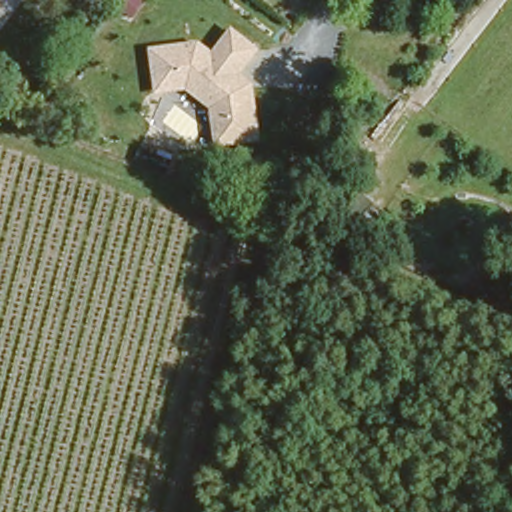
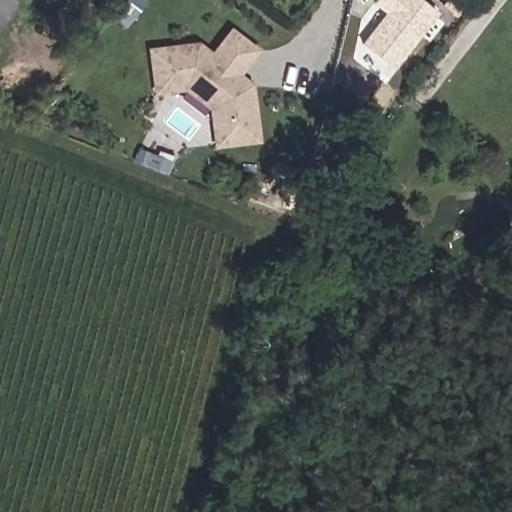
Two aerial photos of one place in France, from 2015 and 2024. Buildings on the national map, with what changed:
new [(373,3),(375,0),(424,0),(439,12),(395,69),(361,43),(385,12),(373,3)]
unchanged [(149,45),(200,40),(210,49),(230,25),(260,50),(239,71),(255,86),(257,142),(212,150),(206,110),(184,89),(159,95),(149,45)]
new [(150,130),(180,141),(169,172),(157,168),(159,163),(152,160),(150,165),(138,161),(150,130)]

